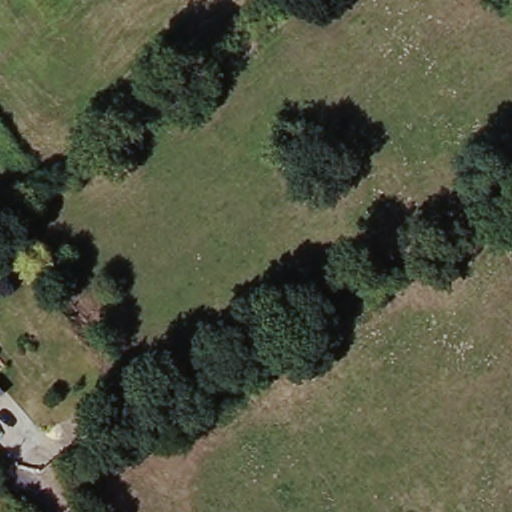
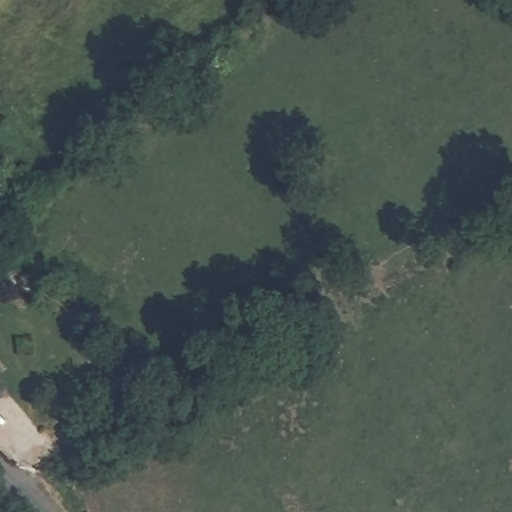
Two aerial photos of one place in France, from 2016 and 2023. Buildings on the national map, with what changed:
[]

